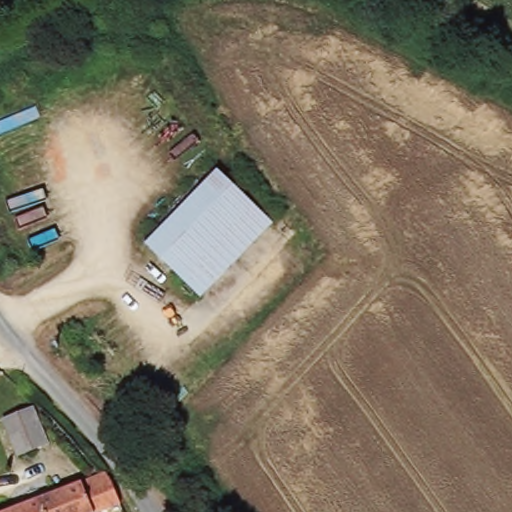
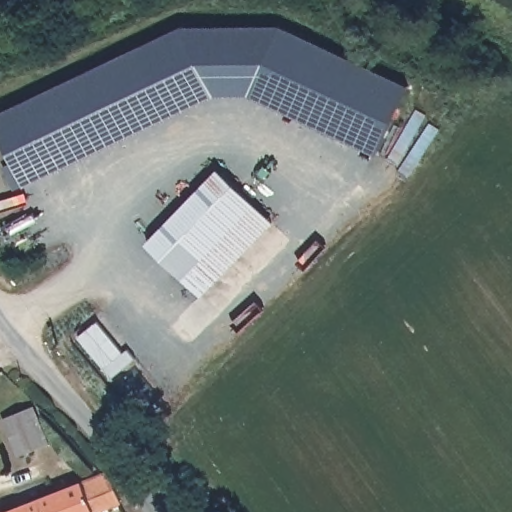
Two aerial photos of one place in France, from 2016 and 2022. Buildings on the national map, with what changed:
new [(0,112),(181,25),(282,25),(408,82),(377,153),(250,95),(214,95),(25,185),(14,189),(0,142),(0,112)]
unchanged [(213,174),(265,226),(196,293),(144,242),(213,174)]
unchanged [(12,416),(9,407),(22,402),(26,411),(35,407),(50,442),(21,453),(6,418),(12,416)]
unchanged [(119,503),(96,512),(10,512),(104,473),(119,503)]

